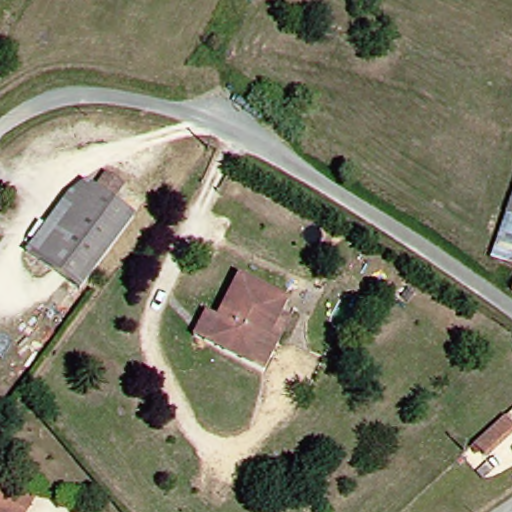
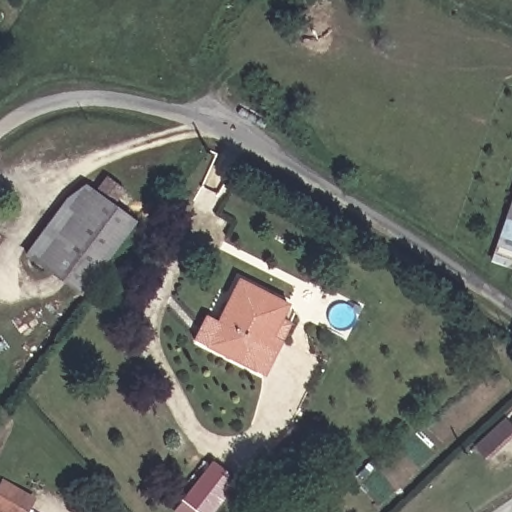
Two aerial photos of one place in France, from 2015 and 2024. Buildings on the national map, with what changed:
unchanged [(38,271),(25,263),(102,164),(115,173),(38,271)]
unchanged [(130,184),(112,209),(132,223),(75,297),(38,271),(115,173),(130,184)]
unchanged [(495,263),(512,206),(512,268),(495,263)]
unchanged [(197,357),(202,349),(185,344),(201,312),(216,319),(238,277),(286,299),(280,312),(292,317),(283,338),(266,372),(260,382),(240,374),(197,357)]
unchanged [(509,290),(512,285),(512,292),(509,290)]
unchanged [(512,429),(512,436),(486,460),(475,449),(505,422),(512,429)]
new [(237,478),(211,512),(175,512),(173,511),(213,459),(237,478)]
unchanged [(0,487),(2,484),(30,504),(25,512),(0,512),(0,487)]

